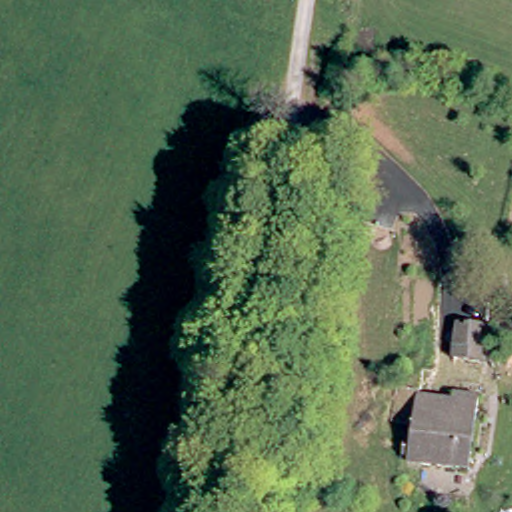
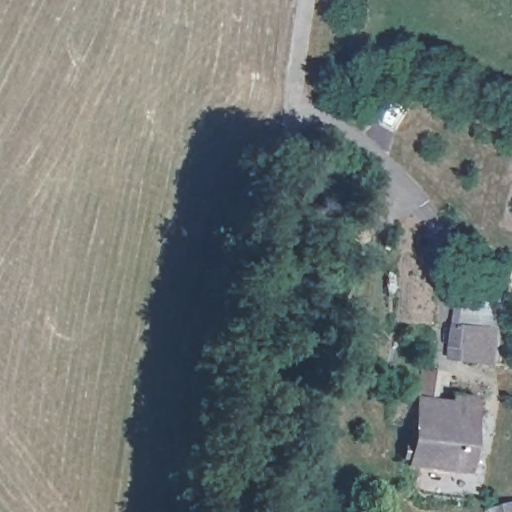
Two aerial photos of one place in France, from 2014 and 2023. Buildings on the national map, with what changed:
unchanged [(461,351),(459,323),(487,323),(488,350),(461,351)]
unchanged [(394,420),(397,394),(422,396),(424,376),(439,378),(436,400),(479,404),(472,475),(409,469),(416,423),(394,420)]

